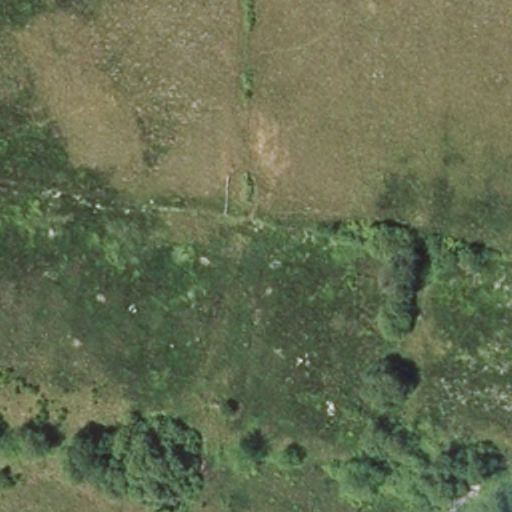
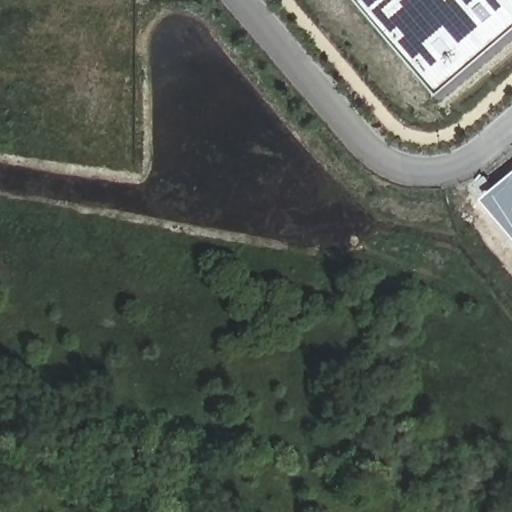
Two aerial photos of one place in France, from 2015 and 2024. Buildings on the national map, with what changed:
new [(512,0),(512,41),(440,102),(353,0),(512,0)]
new [(512,179),(512,238),(483,204),(512,179)]

